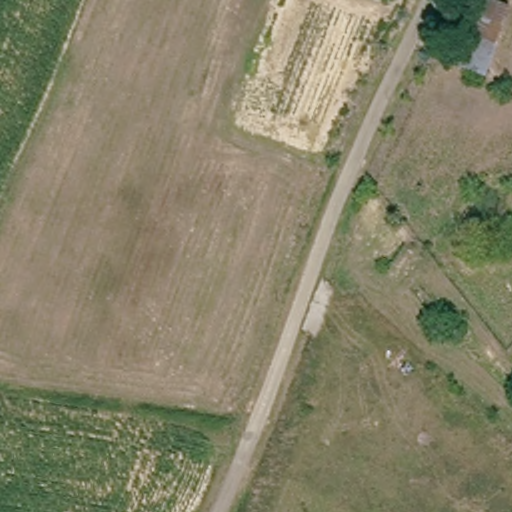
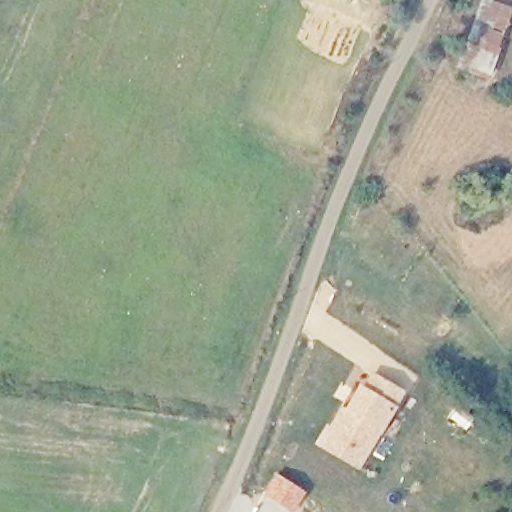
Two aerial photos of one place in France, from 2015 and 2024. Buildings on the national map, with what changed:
unchanged [(457,68),(483,0),(492,0),(512,9),(512,12),(485,79),(457,68)]
new [(403,391),(394,405),(380,427),(357,468),(313,443),(323,424),(327,426),(338,407),(341,408),(355,383),(362,385),(370,372),(403,391)]

